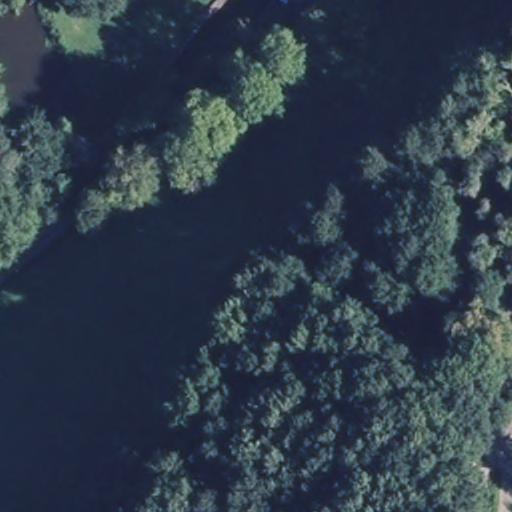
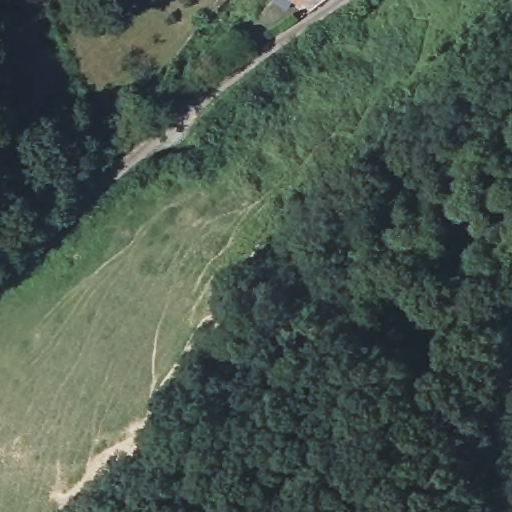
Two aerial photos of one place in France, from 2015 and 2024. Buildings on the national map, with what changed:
unchanged [(294,0),(301,0),(299,3),(294,0)]
unchanged [(512,323),(512,362),(487,346),(512,323)]
unchanged [(479,512),(447,512),(456,465),(484,467),(479,512)]

